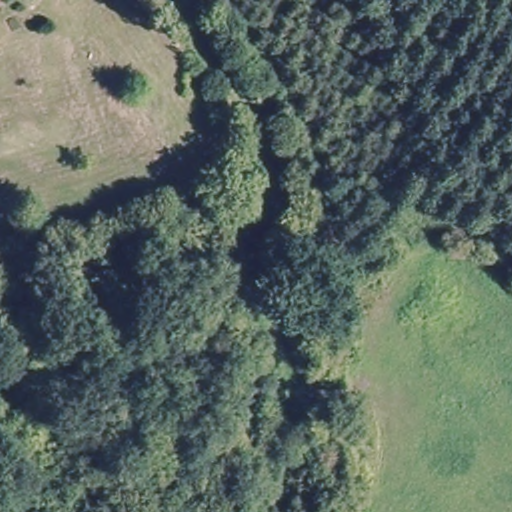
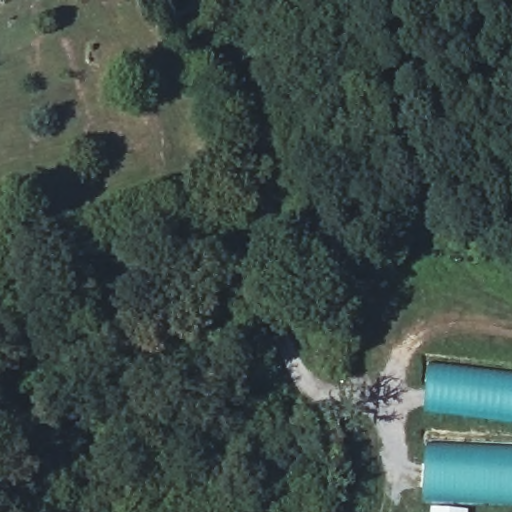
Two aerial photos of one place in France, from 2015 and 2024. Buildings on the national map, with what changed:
new [(427,359),(512,371),(512,423),(493,421),(423,412),(427,359)]
new [(426,438),(468,442),(512,444),(512,504),(505,504),(423,501),(426,438)]
new [(431,508),(469,511),(469,512),(430,512),(431,508)]

